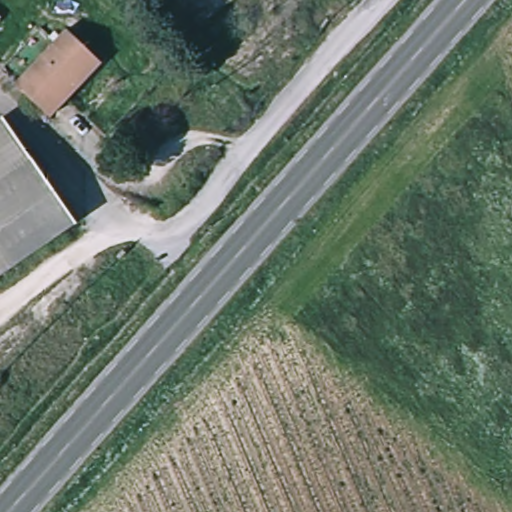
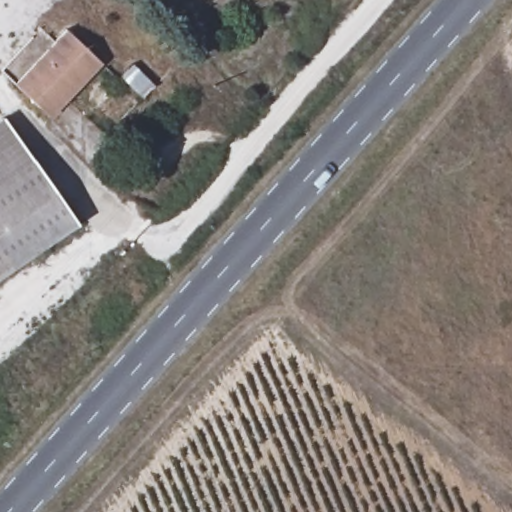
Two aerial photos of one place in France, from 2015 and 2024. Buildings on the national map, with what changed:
unchanged [(39,108),(15,84),(65,29),(100,63),(66,100),(50,118),(39,108)]
unchanged [(74,223),(0,274),(0,121),(3,119),(74,223)]

